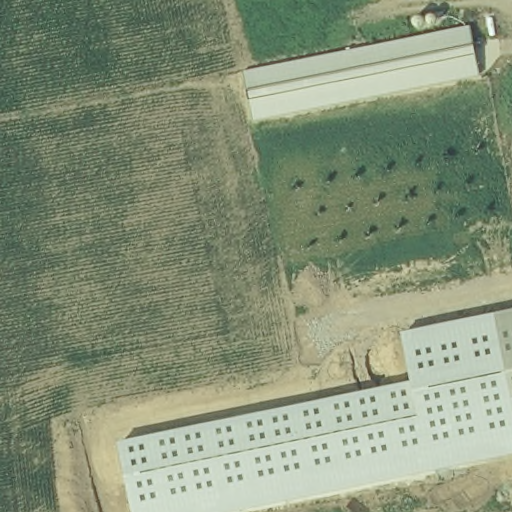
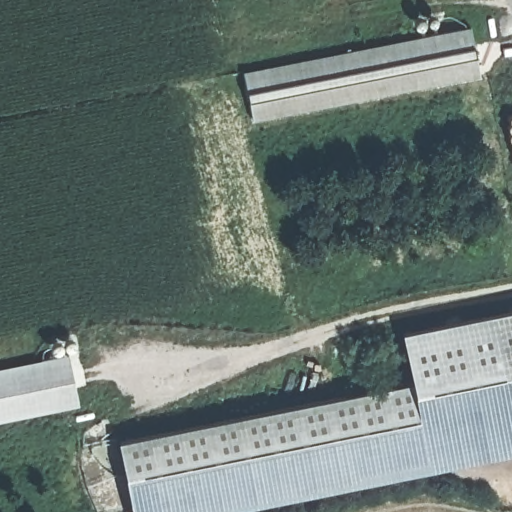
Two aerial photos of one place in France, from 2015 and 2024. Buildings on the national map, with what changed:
unchanged [(483,78),(254,123),(243,71),(471,25),(483,78)]
unchanged [(512,309),(512,418),(490,313),(512,309)]
unchanged [(512,418),(512,453),(224,512),(133,512),(118,442),(412,382),(403,331),(490,313),(512,418)]
new [(0,424),(0,367),(70,352),(80,408),(0,424)]

